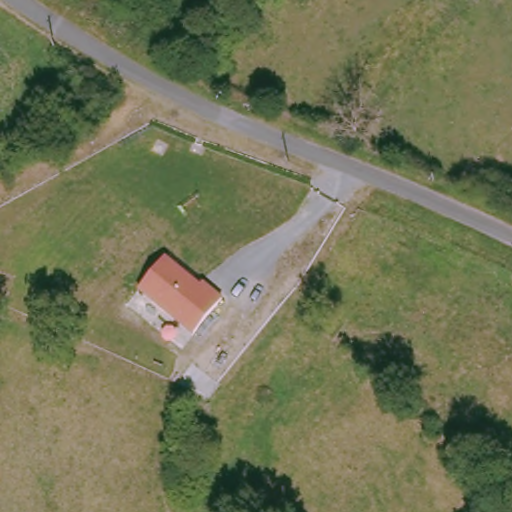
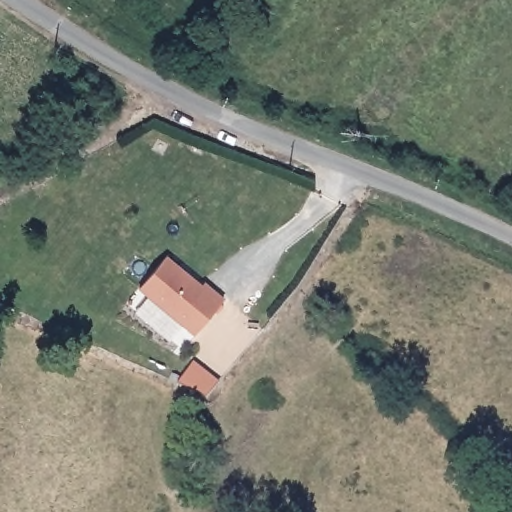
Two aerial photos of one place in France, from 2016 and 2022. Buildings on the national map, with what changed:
unchanged [(140,290),(169,256),(204,285),(207,282),(227,298),(197,336),(140,290)]

